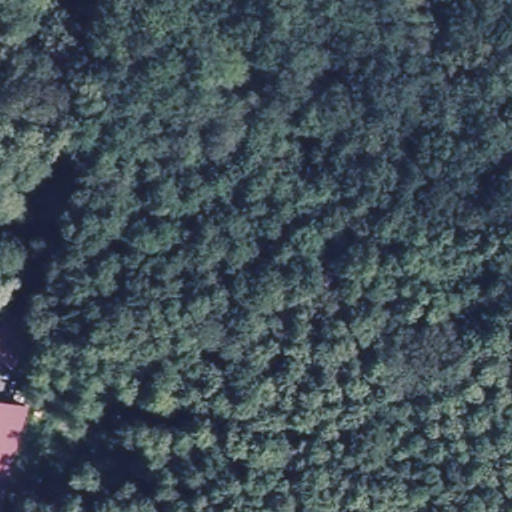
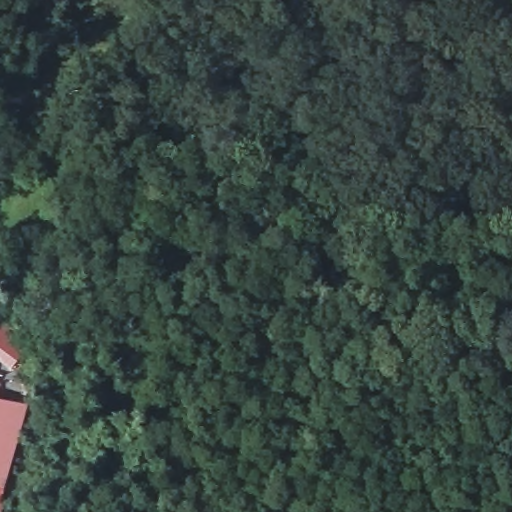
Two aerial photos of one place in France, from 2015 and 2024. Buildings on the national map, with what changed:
unchanged [(12,319),(35,341),(19,367),(0,355),(0,338),(12,319)]
unchanged [(25,405),(13,477),(2,475),(8,432),(0,433),(0,401),(25,405)]
unchanged [(8,432),(0,488),(0,433),(8,432)]

